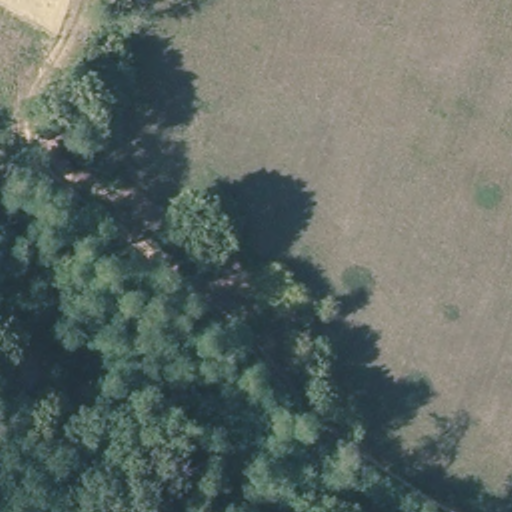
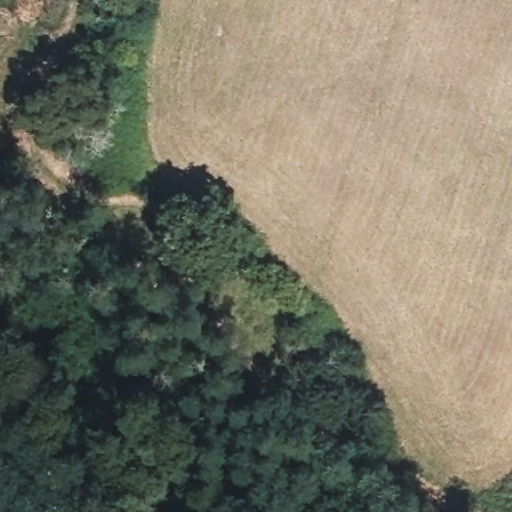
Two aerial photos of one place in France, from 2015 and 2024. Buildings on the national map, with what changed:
[]

